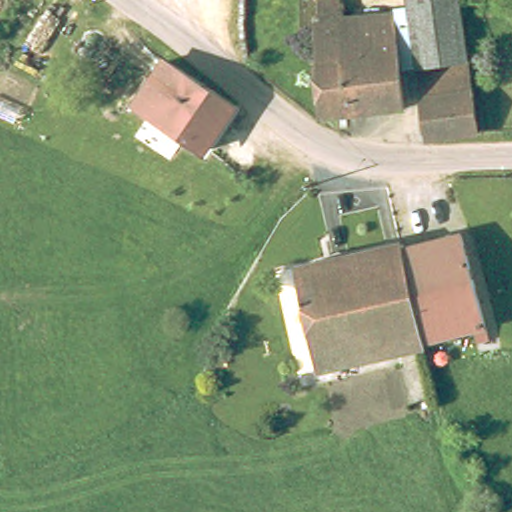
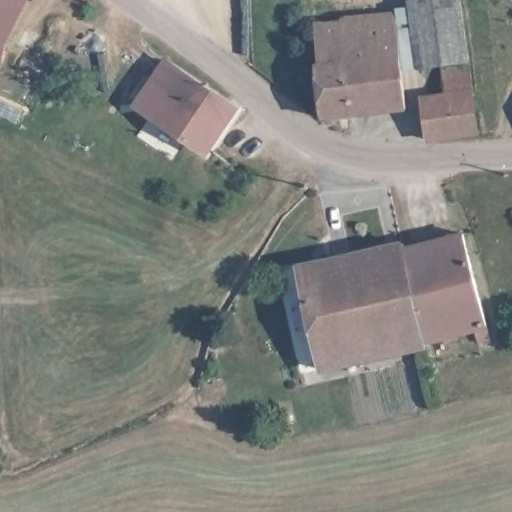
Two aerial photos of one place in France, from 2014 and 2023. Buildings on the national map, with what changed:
new [(3,46),(0,62),(0,0),(27,0),(3,46)]
unchanged [(319,24),(329,22),(326,1),(332,0),(347,0),(350,20),(398,12),(413,105),(329,120),(320,67),(326,66),(319,24)]
unchanged [(475,54),(426,62),(414,0),(466,0),(475,54)]
unchanged [(141,107),(132,118),(118,109),(155,49),(171,60),(141,107)]
unchanged [(238,107),(209,151),(180,132),(141,107),(171,60),(238,107)]
unchanged [(426,69),(473,61),(478,87),(431,96),(426,69)]
unchanged [(485,129),(438,137),(431,96),(478,87),(485,129)]
unchanged [(474,261),(494,347),(481,350),(478,336),(427,347),(405,252),(469,239),(474,261)]
unchanged [(404,247),(405,252),(427,347),(418,350),(321,371),(309,322),(299,272),(404,247)]

